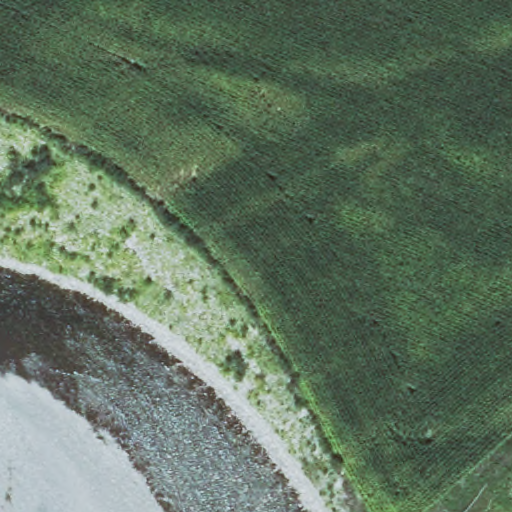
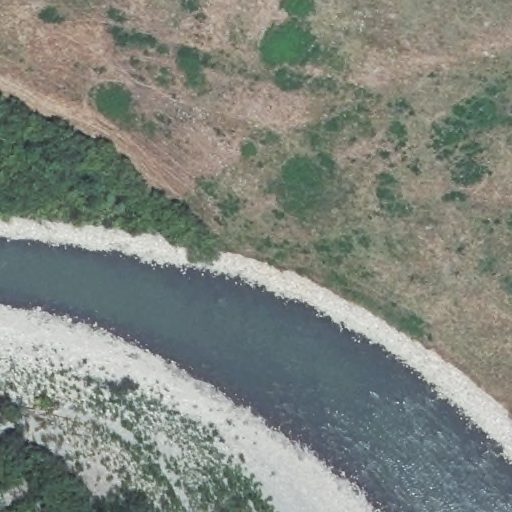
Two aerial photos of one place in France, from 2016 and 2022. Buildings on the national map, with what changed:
[]

